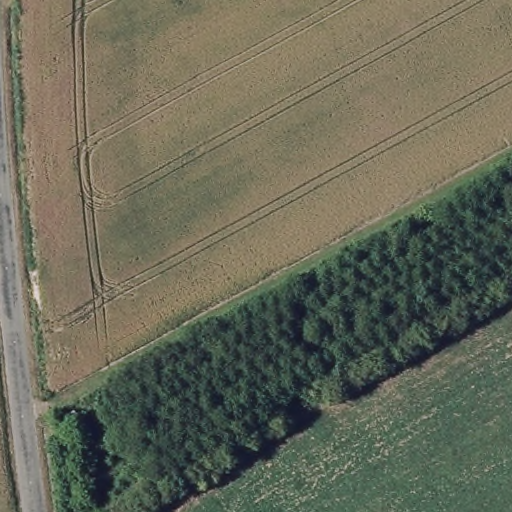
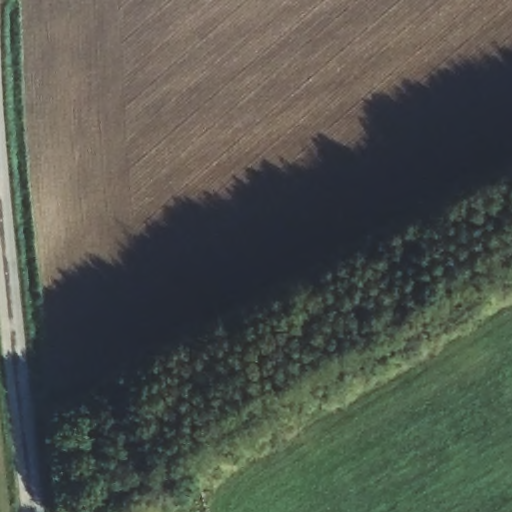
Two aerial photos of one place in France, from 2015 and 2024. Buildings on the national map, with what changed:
unchanged [(80,406),(89,427),(67,436),(57,415),(80,406)]

